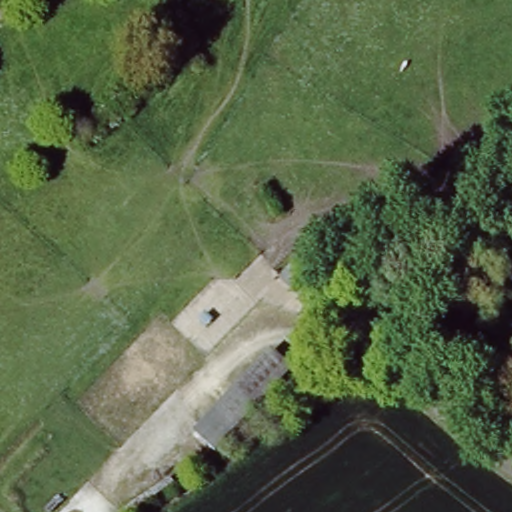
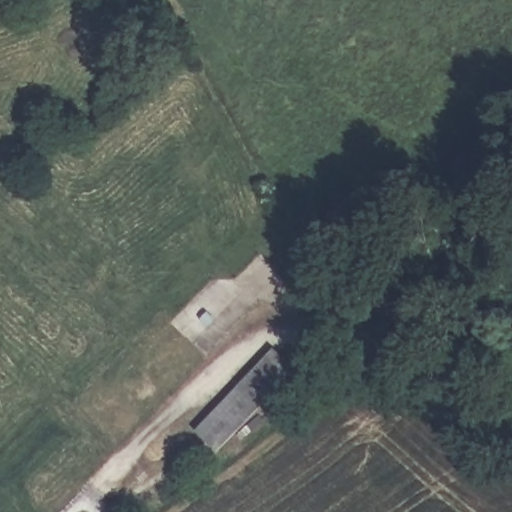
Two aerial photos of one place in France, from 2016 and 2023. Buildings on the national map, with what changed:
unchanged [(317,285),(302,299),(280,279),(295,264),(317,285)]
unchanged [(302,376),(217,455),(193,432),(271,348),(302,376)]

